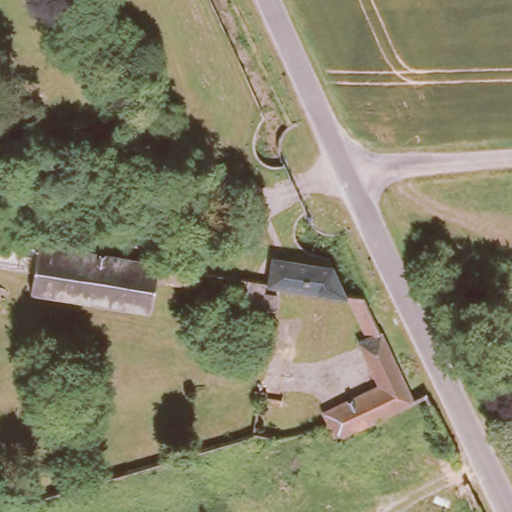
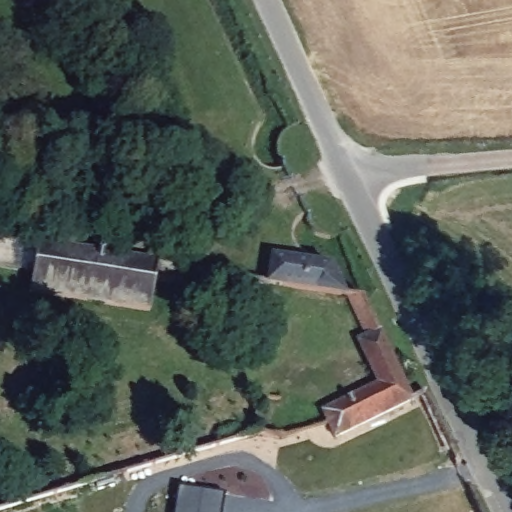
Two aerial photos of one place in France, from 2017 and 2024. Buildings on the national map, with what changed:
unchanged [(152,311),(29,290),(32,273),(0,268),(0,241),(158,269),(152,311)]
unchanged [(271,264),(333,274),(347,302),(267,288),(271,264)]
unchanged [(325,414),(379,387),(357,342),(367,336),(347,302),(367,306),(413,407),(337,442),(329,423),(325,414)]
new [(226,492),(223,512),(176,512),(180,485),(226,492)]

